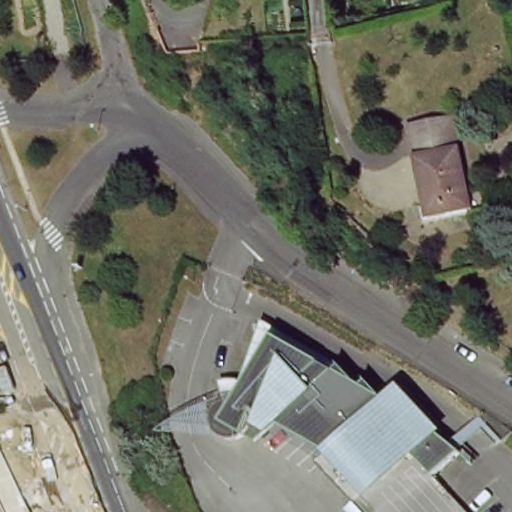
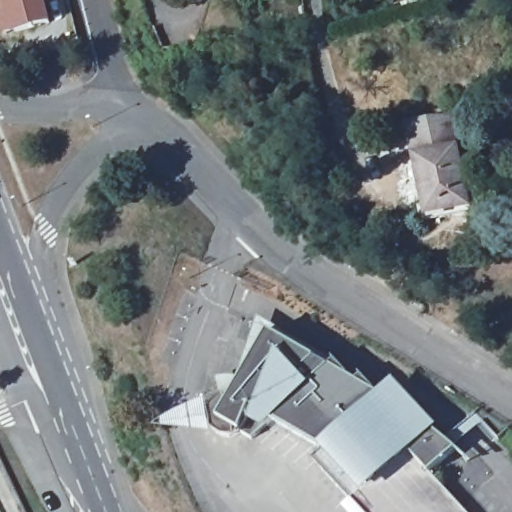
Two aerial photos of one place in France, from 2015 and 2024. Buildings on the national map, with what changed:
new [(0,22),(0,0),(46,0),(54,25),(4,37),(0,22)]
unchanged [(393,2),(393,0),(404,0),(393,2)]
unchanged [(471,212),(429,221),(428,215),(409,125),(451,116),(467,192),(470,206),(471,212)]
unchanged [(467,512),(363,512),(348,495),(318,465),(332,452),(269,415),(248,434),(237,428),(235,430),(232,431),(230,432),(227,432),(224,432),(221,431),(218,431),(217,431),(216,430),(214,429),(212,428),(211,426),(209,425),(208,423),(207,422),(206,420),(206,418),(205,416),(205,413),(205,410),(206,408),(207,405),(207,403),(208,401),(210,400),(211,398),(212,397),(213,396),(214,395),(215,395),(216,394),(217,394),(219,393),(215,377),(222,374),(231,375),(236,378),(265,327),(313,354),(313,355),(326,362),(327,362),(372,388),(424,422),(432,427),(453,443),(437,458),(426,467),(448,491),(467,512)]

